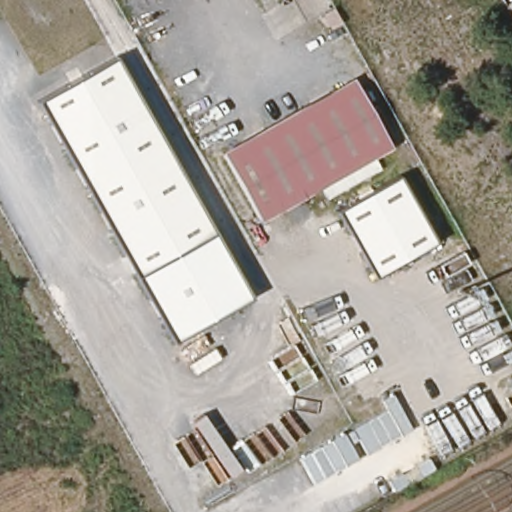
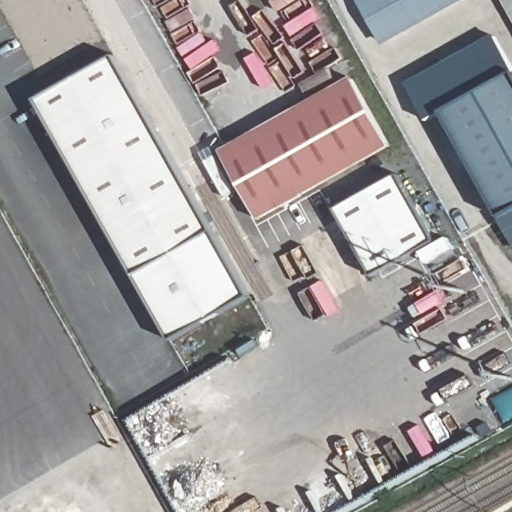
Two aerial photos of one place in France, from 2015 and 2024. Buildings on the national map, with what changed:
new [(358,0),(463,0),(384,45),(358,0)]
new [(502,219),(442,113),(429,122),(409,86),(495,36),(512,67),(512,239),(502,219)]
unchanged [(135,275),(36,101),(116,58),(211,231),(135,275)]
unchanged [(238,140),(351,77),(389,144),(275,208),(258,217),(221,150),(238,140)]
unchanged [(373,277),(337,211),(400,177),(435,241),(373,277)]
unchanged [(249,297),(174,340),(135,275),(201,237),(206,235),(211,231),(249,297)]
demolished [(186,353),(179,340),(236,309),(242,323),(186,353)]

